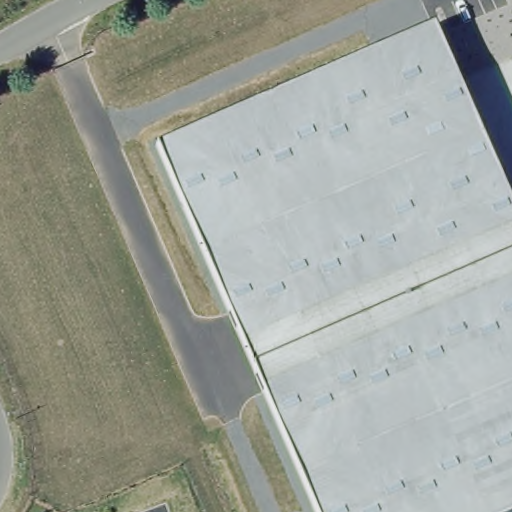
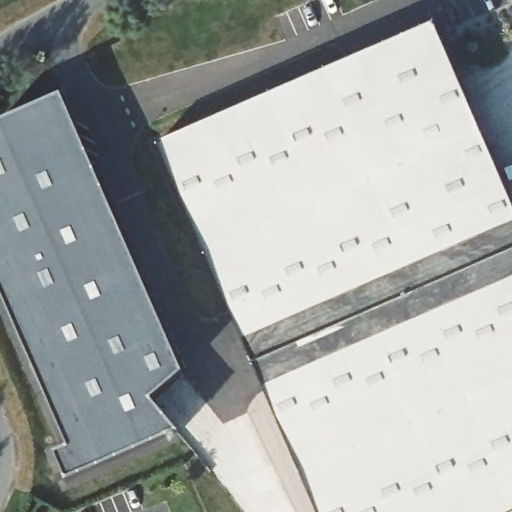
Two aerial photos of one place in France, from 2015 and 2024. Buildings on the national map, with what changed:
unchanged [(512,209),(512,512),(316,512),(157,143),(432,24),(512,209)]
new [(0,123),(60,96),(181,373),(151,401),(178,433),(66,482),(54,455),(68,448),(0,292),(0,123)]

